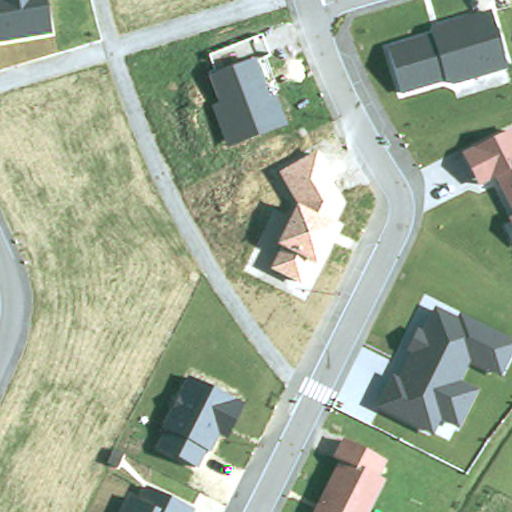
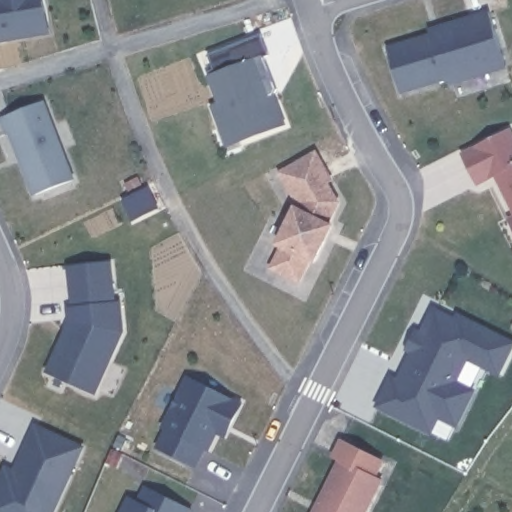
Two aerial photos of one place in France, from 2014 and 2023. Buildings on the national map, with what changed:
unchanged [(0,0),(42,0),(42,12),(33,14),(36,34),(0,41),(0,0)]
unchanged [(446,85),(445,77),(403,91),(390,45),(432,32),(431,27),(491,10),(507,69),(446,85)]
unchanged [(270,97),(276,95),(288,124),(227,147),(210,107),(217,104),(206,77),(255,60),(270,97)]
new [(77,177),(33,197),(1,118),(45,100),(77,177)]
unchanged [(496,177),(490,180),(475,150),(512,130),(512,208),(496,177)]
unchanged [(275,269),(286,247),(281,242),(300,204),(285,173),(315,156),(340,204),(315,261),(310,257),(300,280),(275,269)]
unchanged [(510,217),(512,216),(512,221),(510,217)]
new [(116,301),(123,301),(126,330),(97,395),(46,372),(70,320),(68,305),(71,305),(67,266),(112,261),(116,301)]
unchanged [(512,340),(512,355),(500,378),(468,367),(460,382),(477,390),(457,430),(439,421),(431,435),(377,409),(391,376),(398,379),(409,355),(406,353),(417,327),(424,331),(433,307),(456,321),(460,313),(512,340)]
unchanged [(245,402),(227,439),(220,436),(210,453),(206,451),(198,469),(161,451),(170,432),(161,428),(190,376),(245,402)]
new [(0,512),(0,472),(5,462),(15,467),(35,422),(86,445),(56,512),(0,512)]
unchanged [(378,477),(385,481),(368,512),(314,512),(340,460),(333,456),(342,440),(387,462),(378,477)]
unchanged [(135,500),(143,483),(195,510),(194,512),(120,512),(128,496),(135,500)]

